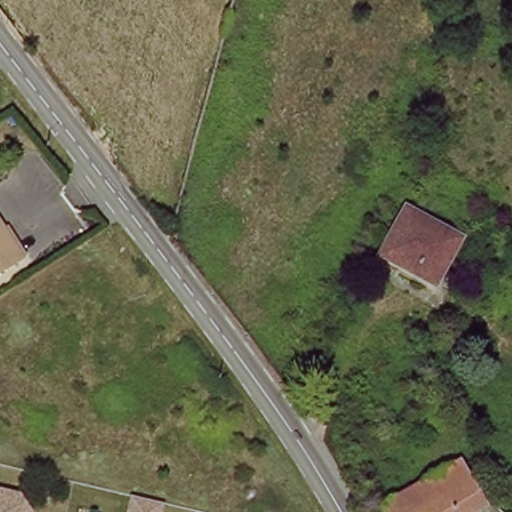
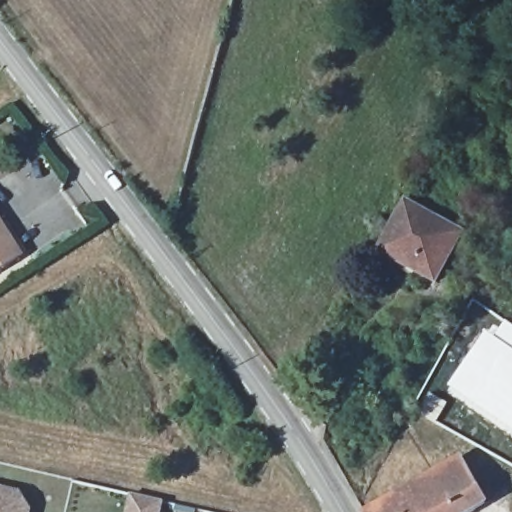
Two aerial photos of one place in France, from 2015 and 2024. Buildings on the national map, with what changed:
unchanged [(379,258),(387,244),(408,206),(462,236),(437,282),(431,279),(428,284),(379,258)]
unchanged [(23,261),(0,276),(0,225),(23,261)]
new [(512,325),(512,435),(446,391),(486,330),(494,336),(505,320),(512,325)]
unchanged [(430,397),(449,409),(438,426),(419,414),(430,397)]
unchanged [(478,512),(372,512),(467,459),(493,504),(478,512)]
unchanged [(31,512),(0,512),(0,490),(34,497),(31,512)]
unchanged [(165,502),(162,512),(127,512),(131,494),(165,502)]

